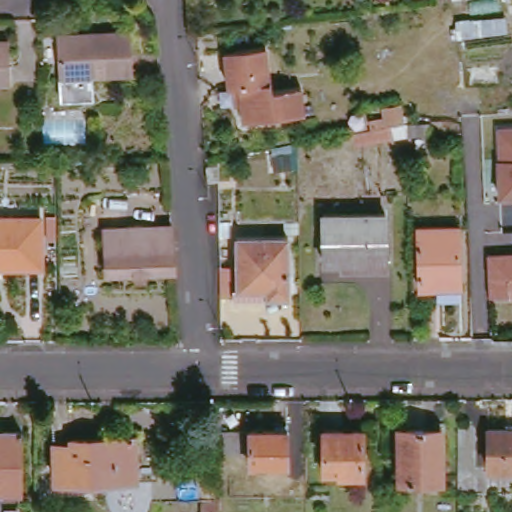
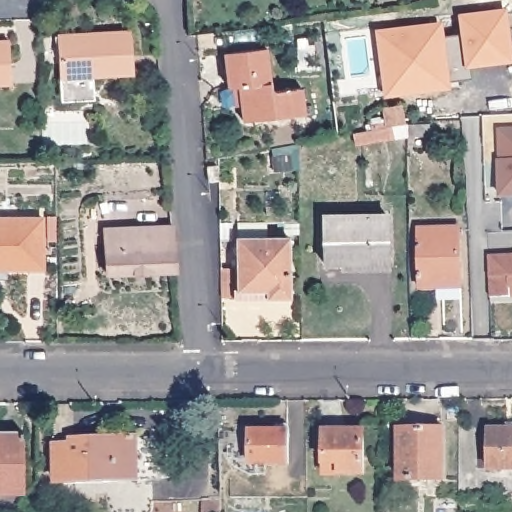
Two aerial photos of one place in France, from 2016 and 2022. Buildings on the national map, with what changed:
new [(470,66),(471,79),(449,82),(450,90),(383,95),(374,30),(443,21),(444,37),(461,35),(459,14),(507,8),(512,57),(512,62),(470,66)]
unchanged [(128,75),(90,77),(86,72),(81,72),(83,92),(56,94),(53,35),(126,31),(128,75)]
unchanged [(6,87),(0,87),(0,43),(6,44),(6,87)]
unchanged [(261,47),(266,90),(296,89),(299,115),(247,120),(241,50),(261,47)]
unchanged [(228,86),(223,87),(220,51),(241,50),(247,120),(236,121),(235,101),(229,102),(228,86)]
unchanged [(349,125),(379,117),(379,106),(401,100),(406,124),(426,121),(427,136),(404,139),(351,146),(349,125)]
unchanged [(503,199),(502,162),(504,162),(503,134),(512,133),(512,199),(503,199)]
unchanged [(216,181),(207,182),(206,167),(216,167),(216,181)]
unchanged [(386,214),(387,261),(324,262),(324,215),(386,214)]
unchanged [(41,271),(0,270),(0,216),(40,216),(41,271)]
unchanged [(169,273),(103,273),(100,229),(168,227),(169,273)]
unchanged [(419,290),(418,229),(458,227),(460,288),(419,290)]
unchanged [(285,294),(236,294),(235,236),(284,236),(285,294)]
unchanged [(512,258),(512,298),(493,299),(492,299),(491,260),(491,258),(512,258)]
unchanged [(443,479),(401,480),(399,428),(441,427),(443,479)]
unchanged [(323,463),(321,428),(363,428),(364,473),(336,473),(323,473),(323,463)]
unchanged [(489,471),(489,428),(512,428),(512,471),(489,471)]
unchanged [(0,487),(0,432),(16,431),(16,487),(0,487)]
unchanged [(246,466),(245,433),(284,433),(286,466),(246,466)]
unchanged [(135,477),(54,478),(54,440),(70,440),(70,436),(135,435),(135,477)]

